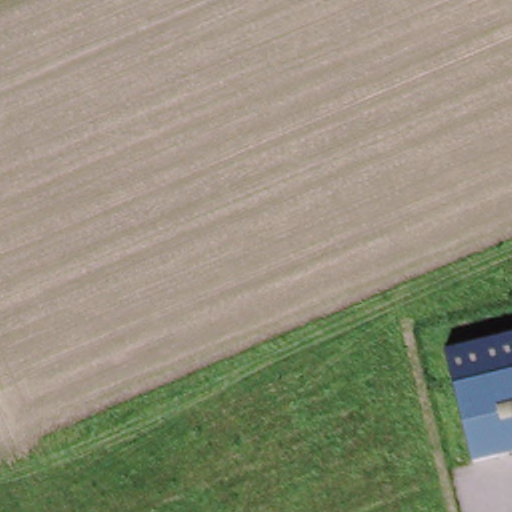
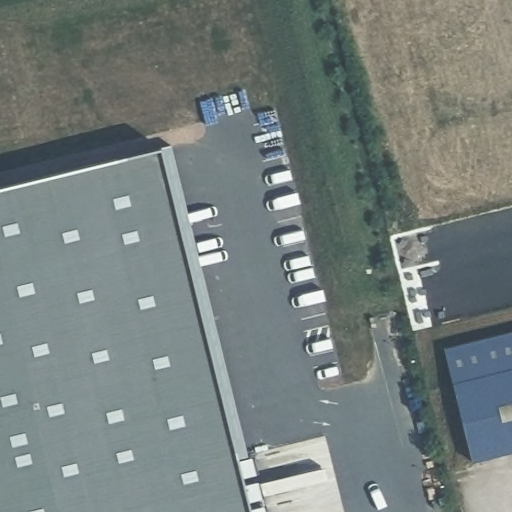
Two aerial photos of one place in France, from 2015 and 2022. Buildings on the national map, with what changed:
new [(173,143),(243,435),(233,437),(164,145),(173,143)]
new [(165,148),(233,437),(239,462),(251,460),(256,476),(243,479),(246,487),(258,484),(261,501),(249,504),(251,511),(263,508),(264,512),(0,512),(0,187),(165,148)]
unchanged [(512,332),(512,454),(472,463),(444,349),(512,332)]

